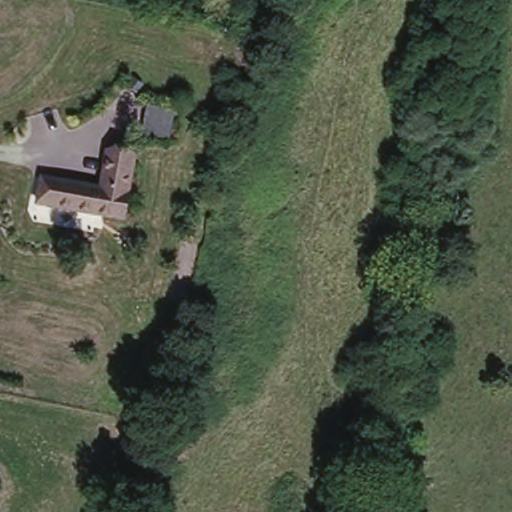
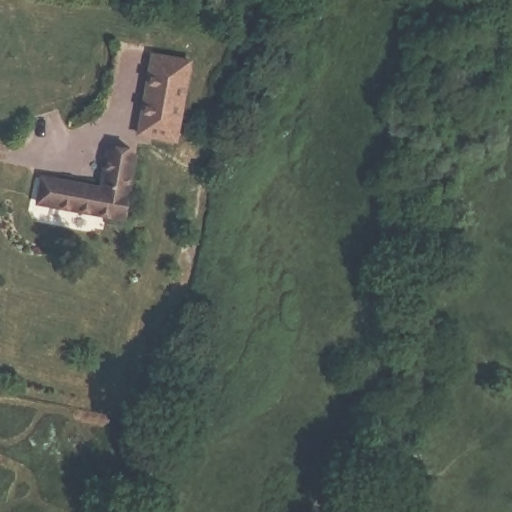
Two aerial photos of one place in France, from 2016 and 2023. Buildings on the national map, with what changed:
new [(191,58),(177,140),(138,133),(154,54),(191,58)]
unchanged [(94,184),(101,186),(109,146),(119,141),(132,143),(139,148),(124,220),(88,212),(94,184)]
unchanged [(37,202),(43,174),(94,184),(88,212),(37,202)]

